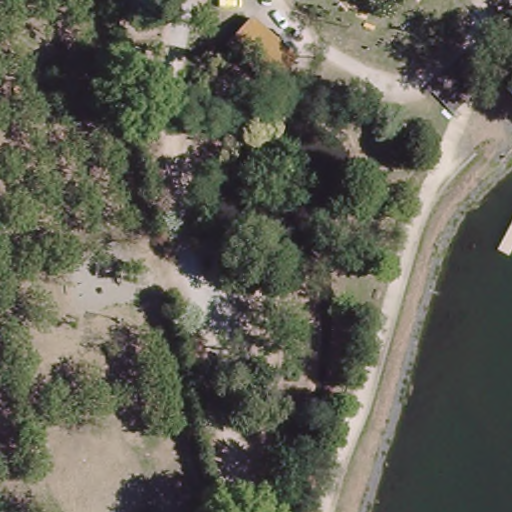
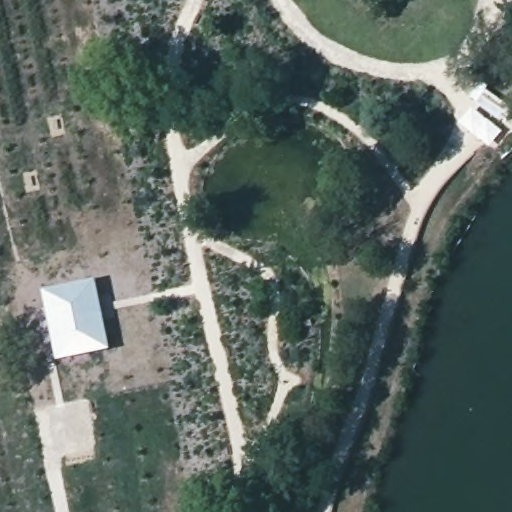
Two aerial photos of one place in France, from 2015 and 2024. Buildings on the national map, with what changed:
unchanged [(297,57),(275,84),(227,44),(250,17),(297,57)]
new [(97,280),(112,352),(57,363),(43,292),(97,280)]

